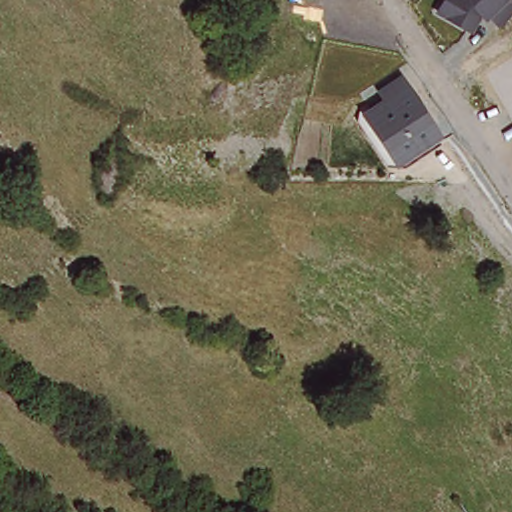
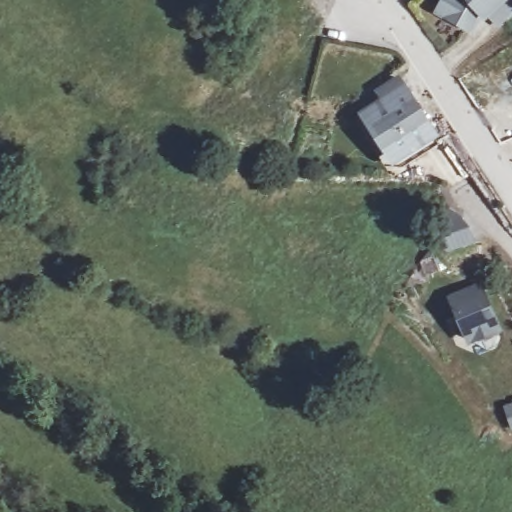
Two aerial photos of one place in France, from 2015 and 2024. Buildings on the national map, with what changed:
unchanged [(496,31),(492,24),(487,27),(482,16),(473,36),(431,16),(443,1),(443,0),(512,0),(512,17),(496,31)]
unchanged [(392,171),(358,116),(378,103),(372,92),(398,75),(441,141),(392,171)]
new [(448,298),(483,283),(504,332),(469,346),(448,298)]

